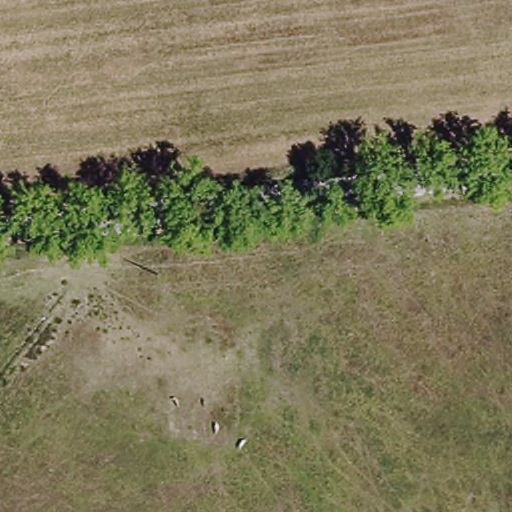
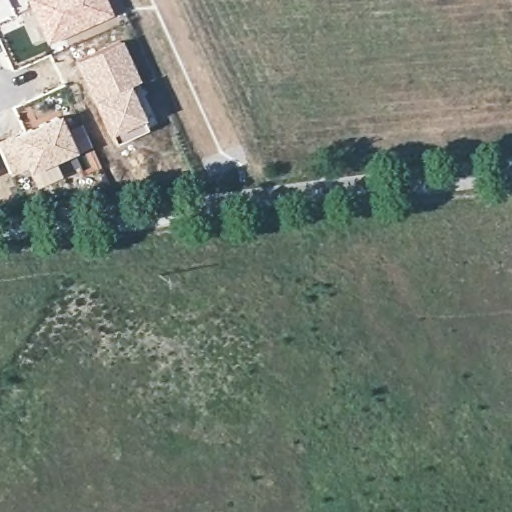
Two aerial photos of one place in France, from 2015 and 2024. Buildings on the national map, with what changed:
new [(112,14),(46,44),(24,0),(106,0),(112,14)]
new [(121,38),(139,80),(129,85),(147,127),(113,142),(74,60),(121,38)]
new [(35,187),(28,171),(26,172),(25,169),(9,174),(0,155),(0,140),(59,114),(66,129),(75,152),(55,161),(61,176),(35,187)]
new [(82,174),(75,152),(90,146),(99,167),(82,174)]

